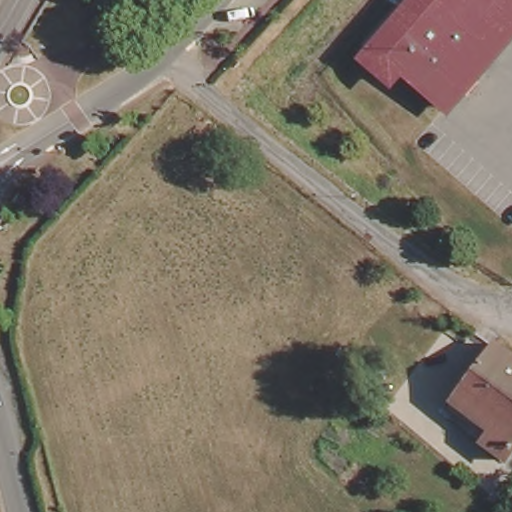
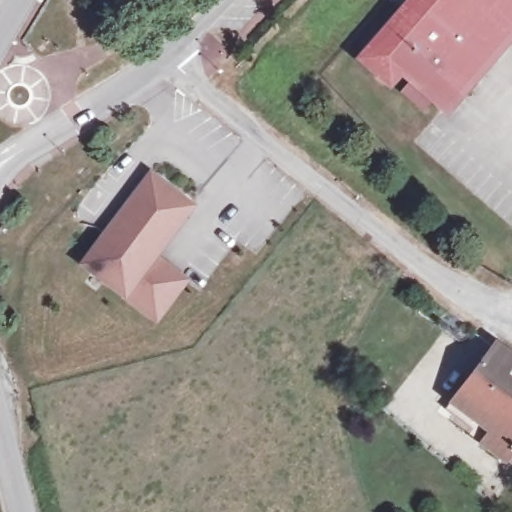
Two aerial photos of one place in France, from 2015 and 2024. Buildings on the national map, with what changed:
unchanged [(400,75),(390,87),(356,57),(405,0),(512,0),(512,37),(449,111),(400,75)]
new [(157,323),(123,298),(78,264),(150,169),(197,206),(158,257),(189,280),(157,323)]
unchanged [(512,360),(512,464),(489,448),(495,439),(481,429),(484,424),(457,407),(497,350),(512,360)]

